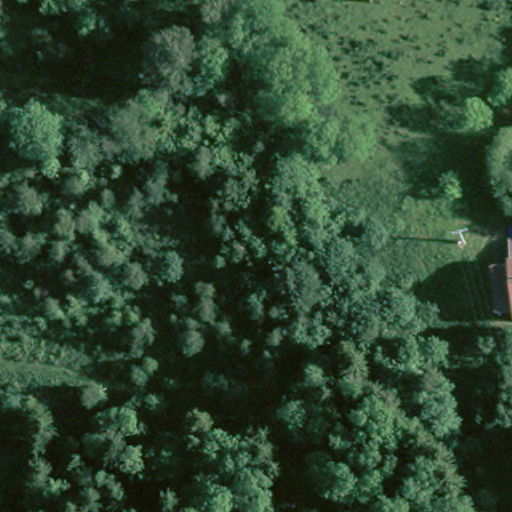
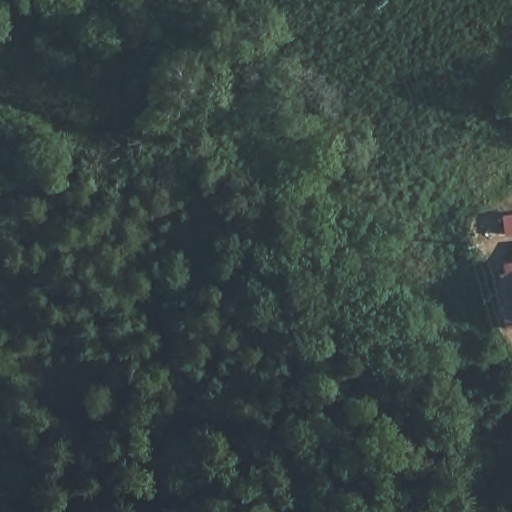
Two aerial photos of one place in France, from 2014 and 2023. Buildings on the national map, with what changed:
unchanged [(509,247),(512,246),(512,264),(509,247)]
unchanged [(512,277),(512,321),(503,323),(495,282),(512,277)]

